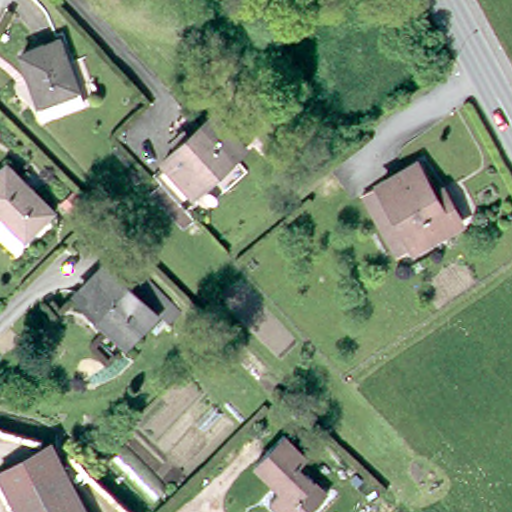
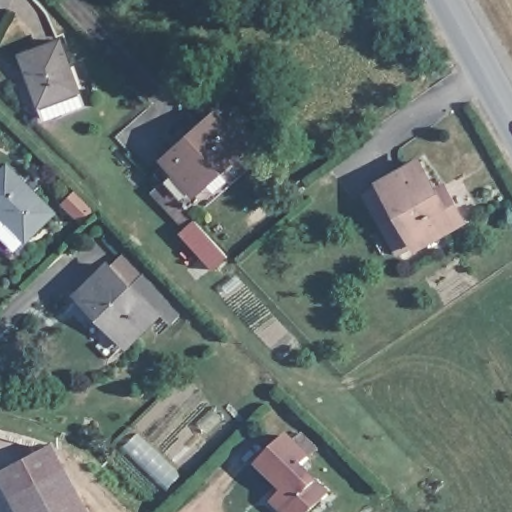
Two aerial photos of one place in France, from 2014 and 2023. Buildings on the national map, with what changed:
unchanged [(83,105),(45,118),(21,55),(33,51),(59,41),(83,103),(83,105)]
unchanged [(178,204),(163,187),(171,179),(173,177),(164,167),(176,157),(174,155),(189,142),(184,136),(196,126),(201,131),(226,109),(237,120),(244,114),(262,133),(254,140),(256,142),(203,188),(192,198),(205,212),(203,214),(194,222),(178,204)]
unchanged [(3,211),(0,207),(0,168),(8,161),(53,207),(26,234),(15,245),(0,229),(0,214),(3,211)]
unchanged [(400,260),(365,198),(419,168),(435,198),(444,192),(451,204),(463,225),(400,260)]
unchanged [(90,205),(80,215),(64,199),(74,190),(90,205)]
unchanged [(160,328),(151,320),(121,350),(72,300),(115,258),(163,307),(172,317),(160,328)]
unchanged [(271,502),(285,487),(279,481),(276,485),(256,465),(284,436),(308,458),(299,467),(329,496),(311,512),(282,512),(271,502)]
unchanged [(36,453),(67,512),(0,512),(0,473),(36,453)]

